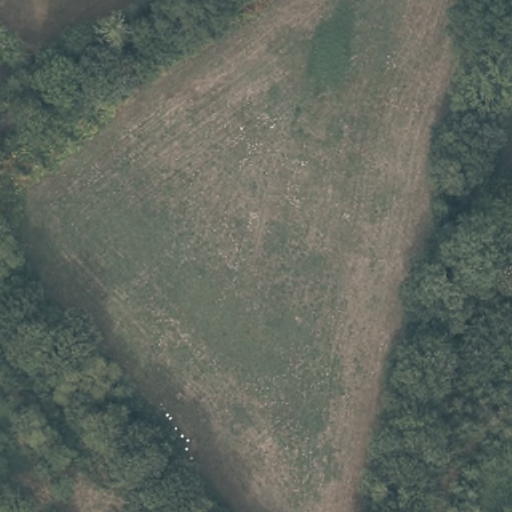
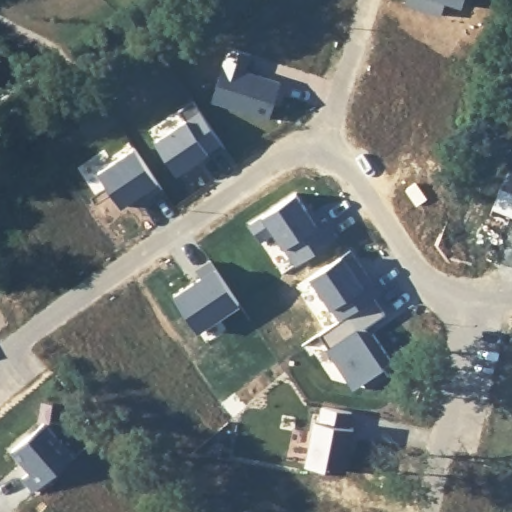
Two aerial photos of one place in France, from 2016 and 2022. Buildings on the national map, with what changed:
new [(464,0),(462,6),(446,1),(441,16),(405,5),(406,0),(464,0)]
unchanged [(512,24),(512,65),(499,62),(512,24)]
new [(230,47),(252,54),(246,71),(281,82),(269,120),(212,101),(230,47)]
new [(185,120),(179,110),(194,101),(225,148),(210,157),(208,154),(177,174),(155,141),(185,120)]
new [(135,147),(163,189),(148,200),(143,192),(121,206),(99,172),(135,147)]
new [(416,183),(427,199),(418,205),(407,190),(416,183)]
new [(306,209),(311,205),(322,221),(325,219),(338,237),(296,265),(274,234),(261,241),(250,224),(296,193),(306,209)]
new [(351,250),(380,293),(374,297),(340,320),(311,276),(351,250)]
new [(203,277),(199,271),(212,262),(240,303),(199,330),(176,296),(203,277)]
new [(340,320),(374,297),(386,314),(366,327),(371,334),(373,333),(392,360),(382,366),(389,376),(368,390),(362,380),(354,385),(319,334),(340,320)]
new [(315,420),(320,421),(323,406),(352,412),(349,427),(354,428),(345,472),(306,465),(315,420)]
new [(44,423),(74,457),(34,491),(23,478),(30,472),(12,450),(44,423)]

